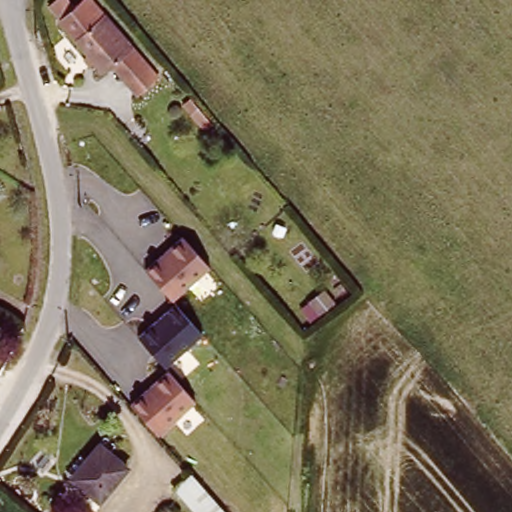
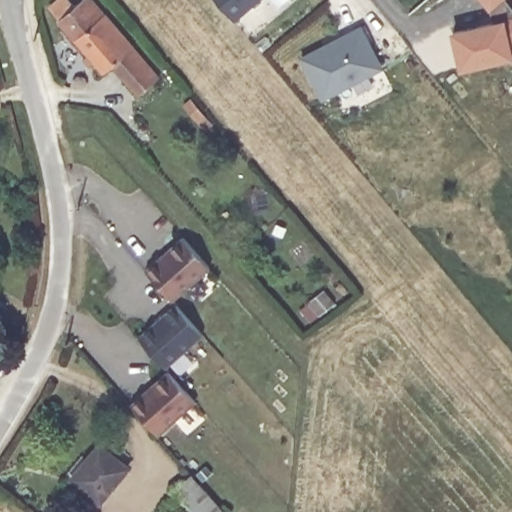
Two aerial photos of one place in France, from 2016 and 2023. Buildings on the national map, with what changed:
unchanged [(160,74),(133,95),(106,64),(96,72),(51,23),(80,0),(93,0),(160,74)]
new [(233,21),(217,0),(259,0),(233,21)]
new [(512,6),(512,58),(458,69),(449,30),(494,19),(490,10),(488,11),(479,0),(507,0),(512,6)]
new [(321,101),(298,56),(361,23),(384,67),(321,101)]
unchanged [(211,267),(171,298),(146,268),(183,236),(211,267)]
unchanged [(204,333),(164,368),(138,340),(174,304),(204,333)]
unchanged [(166,371),(196,402),(158,436),(129,404),(166,371)]
unchanged [(68,474),(98,441),(121,464),(91,497),(68,474)]
unchanged [(191,477),(222,512),(205,512),(182,487),(191,477)]

